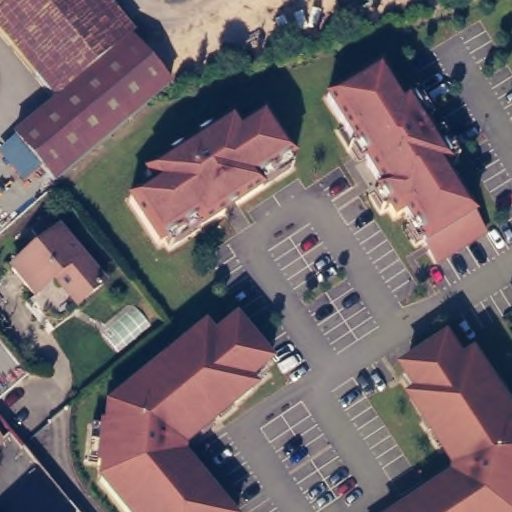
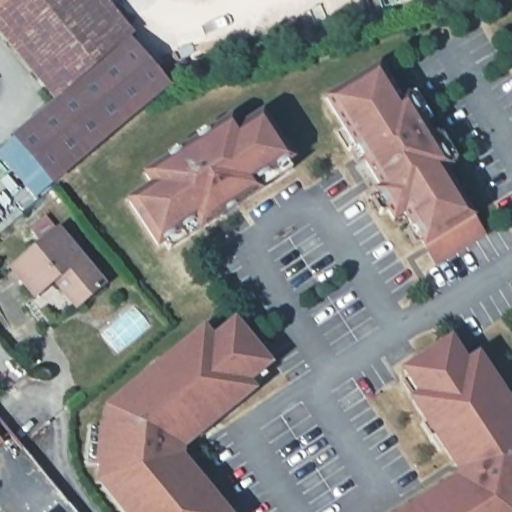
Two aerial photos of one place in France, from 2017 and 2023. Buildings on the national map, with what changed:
unchanged [(0,18),(0,0),(23,0),(0,18)]
unchanged [(23,0),(107,0),(174,82),(169,86),(129,40),(58,99),(0,27),(0,18),(23,0)]
unchanged [(169,86),(54,183),(14,136),(53,104),(58,99),(129,40),(169,86)]
unchanged [(437,266),(424,246),(415,251),(402,232),(409,227),(402,219),(390,227),(369,195),(377,188),(365,169),(360,172),(345,149),(353,144),(327,96),(382,60),(405,98),(414,92),(457,165),(447,171),(487,234),(437,266)]
unchanged [(289,164),(294,171),(170,253),(164,245),(158,247),(125,201),(147,185),(140,175),(234,115),(240,125),(264,109),(297,157),(289,164)]
unchanged [(34,282),(17,263),(63,225),(109,280),(82,302),(60,275),(41,291),(34,282)]
unchanged [(259,389),(185,449),(185,457),(231,512),(120,512),(95,482),(98,422),(102,422),(104,407),(204,324),(212,333),(235,315),(275,365),(252,381),(259,389)]
unchanged [(455,466),(409,397),(417,391),(403,368),(452,335),(466,358),(479,350),(512,401),(512,512),(398,512),(453,476),(455,466)]

